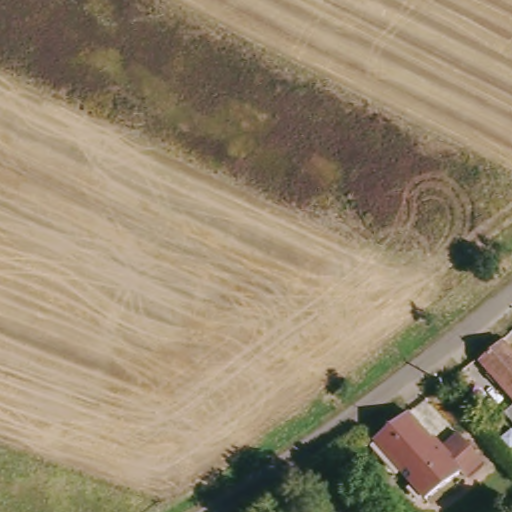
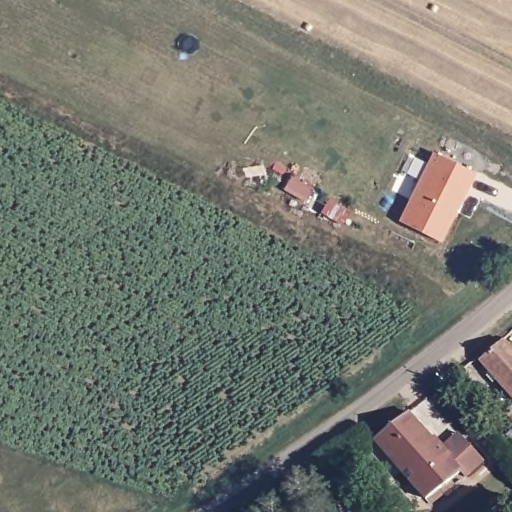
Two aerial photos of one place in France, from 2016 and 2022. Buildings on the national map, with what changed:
new [(433,152),(473,172),(442,242),(401,223),(433,152)]
unchanged [(512,401),(475,359),(500,339),(512,352),(512,401)]
unchanged [(512,403),(512,415),(506,408),(512,403)]
unchanged [(418,496),(366,438),(406,407),(437,441),(461,420),(472,432),(483,445),(458,465),(436,482),(418,496)]

